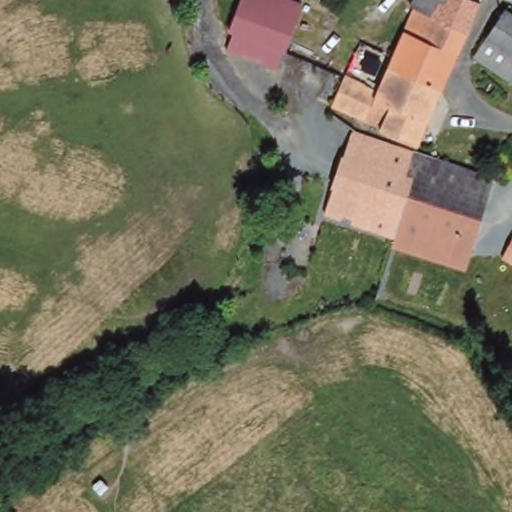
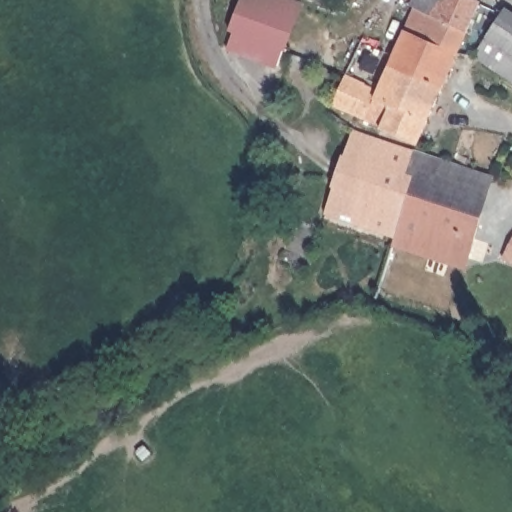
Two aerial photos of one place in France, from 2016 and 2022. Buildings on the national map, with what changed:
unchanged [(240,0),(296,0),(303,2),(290,49),(231,30),(240,0)]
unchanged [(428,18),(429,18),(433,4),(441,5),(444,0),(467,0),(474,4),(437,91),(419,83),(384,67),(408,10),(428,18)]
unchanged [(441,5),(433,4),(429,18),(428,18),(408,10),(404,7),(409,0),(444,0),(441,5)]
unchanged [(512,17),(512,86),(471,58),(502,10),(512,17)]
unchanged [(290,49),(284,69),(226,50),(231,30),(290,49)]
unchanged [(384,67),(419,83),(437,91),(411,150),(374,135),(376,131),(326,111),(311,104),(325,74),(336,79),(372,92),(384,67)]
unchanged [(410,153),(400,178),(407,181),(389,240),(321,217),(348,133),(410,153)]
unchanged [(407,181),(400,178),(410,153),(428,160),(488,179),(458,271),(433,263),(386,249),(389,240),(407,181)]
unchanged [(512,237),(512,268),(504,263),(499,260),(512,237)]

